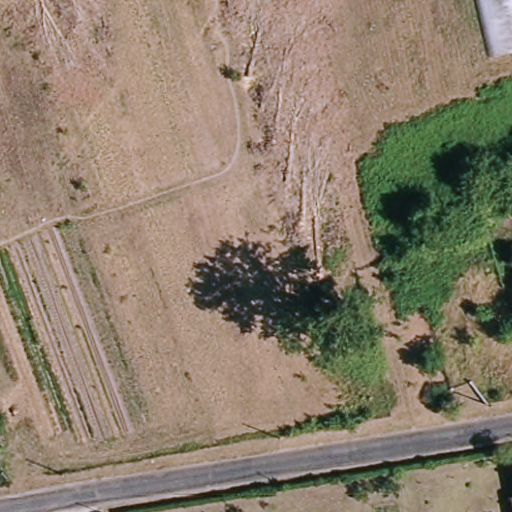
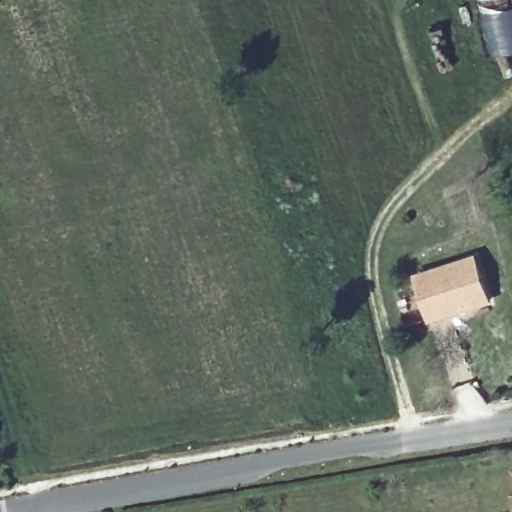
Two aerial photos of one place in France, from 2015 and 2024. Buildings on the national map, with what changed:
new [(478,258),(492,300),(432,320),(418,276),(478,258)]
unchanged [(507,501),(512,501),(512,512),(508,512),(507,501)]

